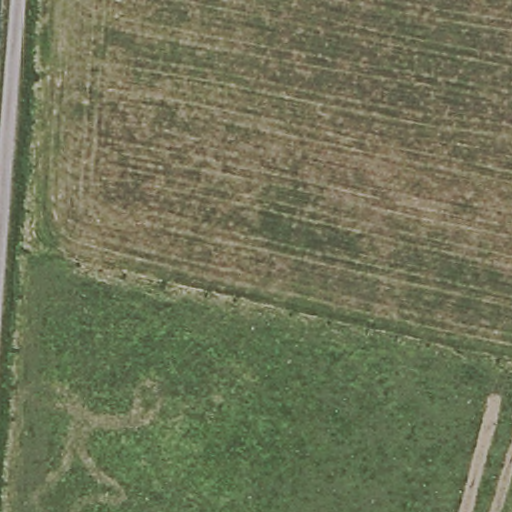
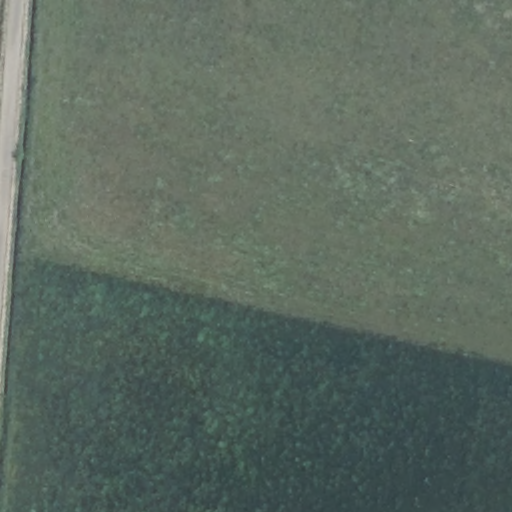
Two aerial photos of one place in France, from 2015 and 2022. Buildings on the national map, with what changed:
[]

